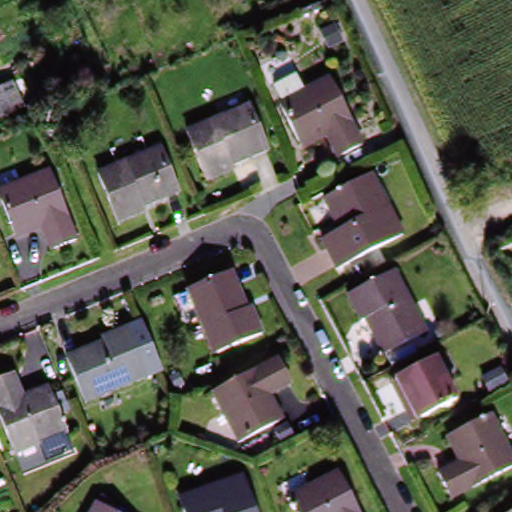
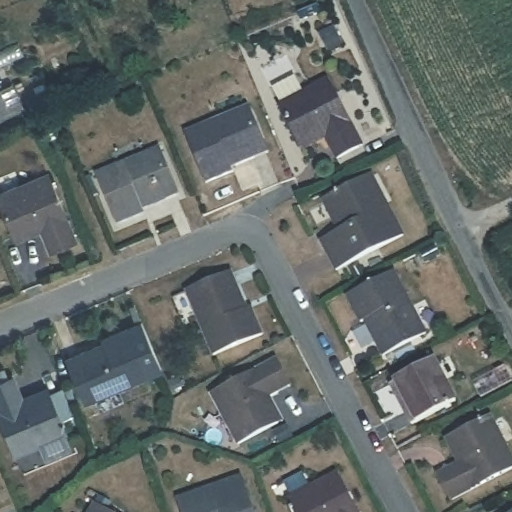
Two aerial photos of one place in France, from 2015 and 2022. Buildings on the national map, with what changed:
unchanged [(307,91),(330,80),(360,146),(336,157),(325,133),(301,144),(282,102),(284,101),(277,85),(300,75),(307,91)]
unchanged [(0,85),(2,84),(14,110),(0,116),(0,85)]
unchanged [(244,104),(262,145),(224,162),(223,162),(226,168),(205,177),(204,177),(182,130),(244,104)]
unchanged [(140,211),(119,220),(97,173),(159,146),(177,187),(138,205),(140,211)]
unchanged [(51,256),(40,232),(14,243),(0,210),(0,196),(50,175),(79,244),(51,256)]
unchanged [(345,266),(330,237),(347,227),(330,199),(370,175),(401,232),(345,266)]
unchanged [(390,354),(370,315),(362,318),(350,296),(395,273),(426,334),(390,354)]
unchanged [(215,358),(180,296),(217,275),(239,312),(247,308),(259,330),(215,358)]
unchanged [(84,402),(65,362),(104,345),(102,338),(125,330),(146,374),(84,402)]
unchanged [(232,440),(210,394),(276,360),(288,388),(267,398),(276,418),(232,440)]
unchanged [(416,430),(395,390),(438,367),(457,407),(416,430)]
unchanged [(0,403),(0,384),(22,374),(32,395),(51,387),(69,432),(24,455),(0,403)]
unchanged [(451,502),(438,478),(463,465),(450,441),(493,418),(512,456),(512,469),(451,502)]
unchanged [(286,500),(337,476),(354,512),(293,512),(286,500)]
unchanged [(246,488),(255,512),(188,512),(246,488)]
unchanged [(94,505),(105,512),(90,512),(94,505)]

